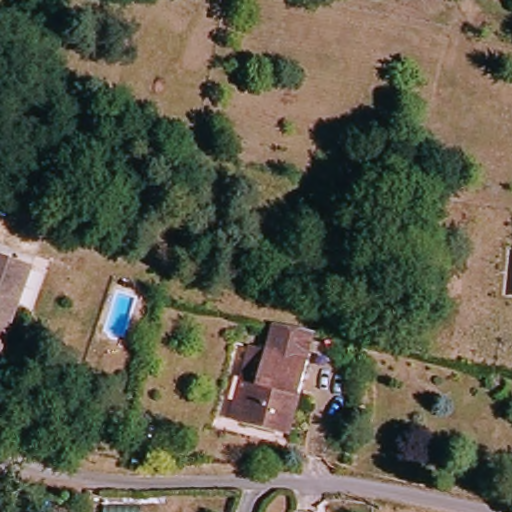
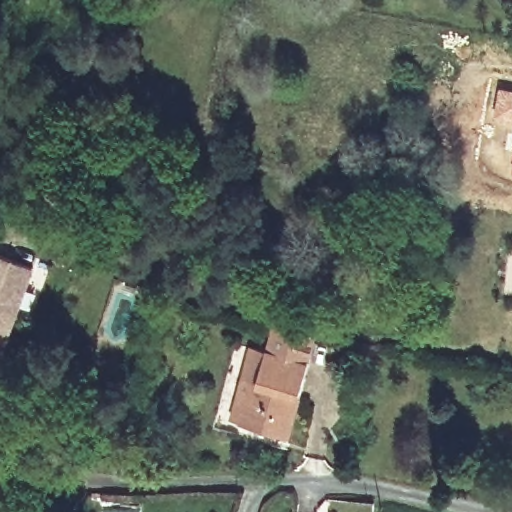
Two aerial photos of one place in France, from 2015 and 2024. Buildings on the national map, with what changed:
new [(498,87),(512,90),(512,129),(491,124),(498,87)]
new [(511,174),(512,166),(512,174),(511,174)]
unchanged [(44,267),(13,356),(0,352),(0,261),(5,252),(44,267)]
unchanged [(287,431),(252,420),(240,416),(246,394),(263,344),(284,351),(288,328),(330,334),(312,396),(300,436),(287,431)]

